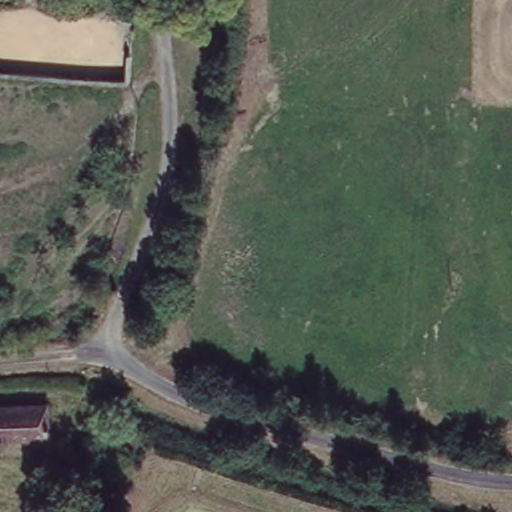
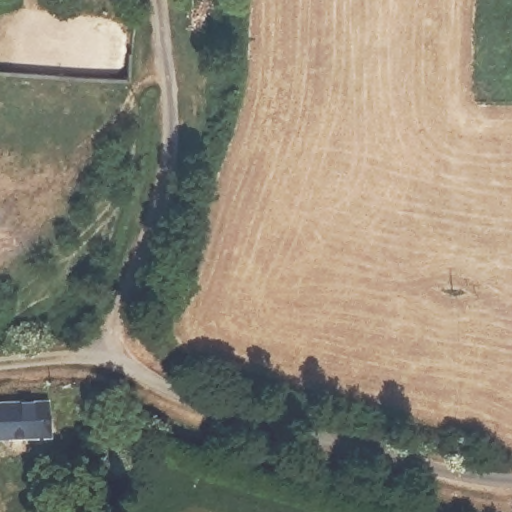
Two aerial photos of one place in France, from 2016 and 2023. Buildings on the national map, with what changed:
unchanged [(47,437),(0,438),(0,404),(45,404),(47,437)]

